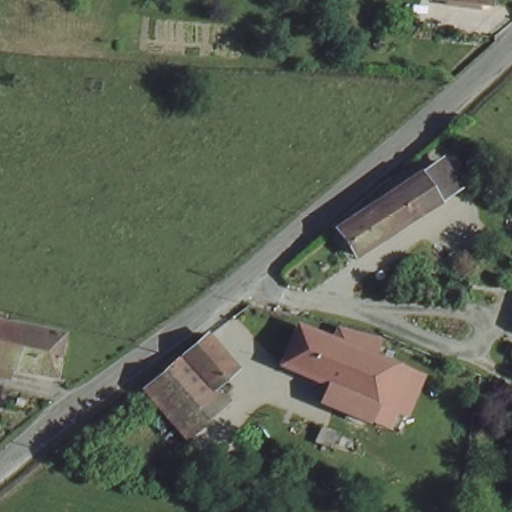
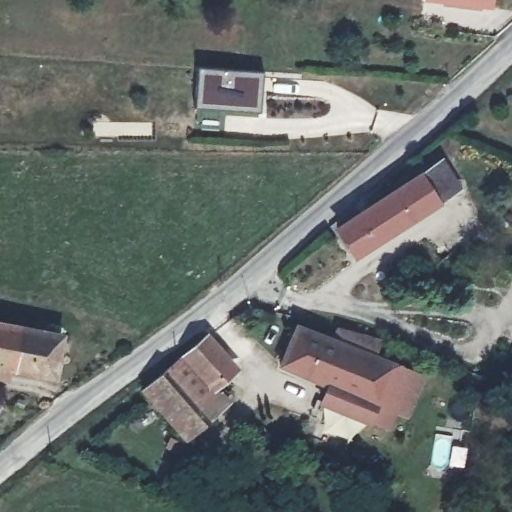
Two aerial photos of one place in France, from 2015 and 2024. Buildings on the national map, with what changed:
unchanged [(438,0),(486,0),(485,6),(438,0)]
new [(199,65),(265,70),(262,106),(262,111),(196,106),(196,102),(199,65)]
unchanged [(437,198),(353,251),(338,228),(420,173),(437,198)]
unchanged [(0,372),(0,327),(58,337),(48,380),(0,372)]
unchanged [(331,347),(336,335),(383,346),(376,364),(422,381),(398,440),(321,408),(328,391),(280,371),(294,333),(331,347)]
unchanged [(233,366),(213,382),(229,403),(183,441),(141,390),(208,335),(233,366)]

